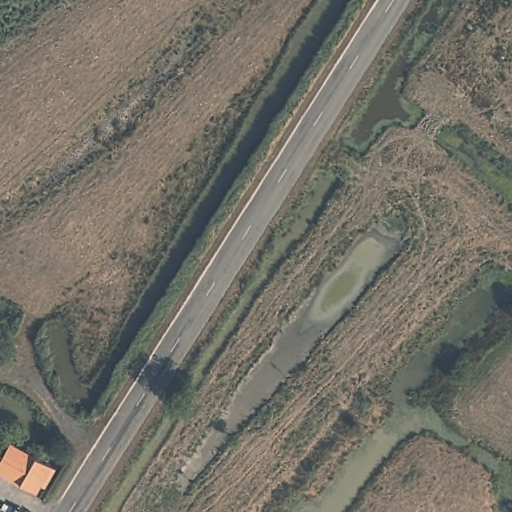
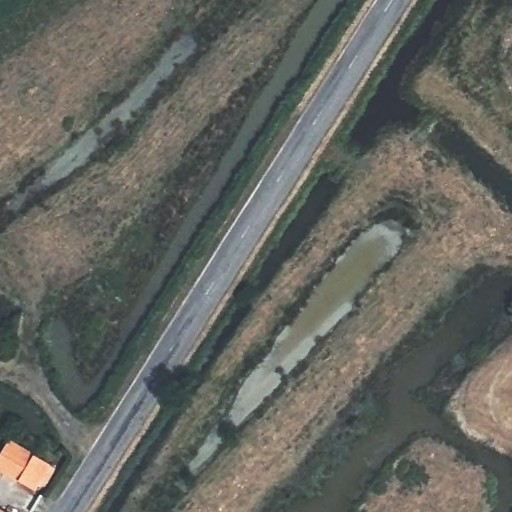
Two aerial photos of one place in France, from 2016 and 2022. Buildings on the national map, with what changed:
unchanged [(47,489),(40,485),(36,492),(0,473),(0,456),(9,440),(56,469),(47,489)]

